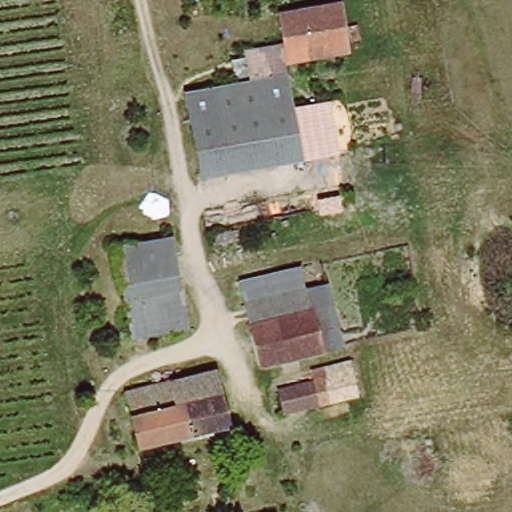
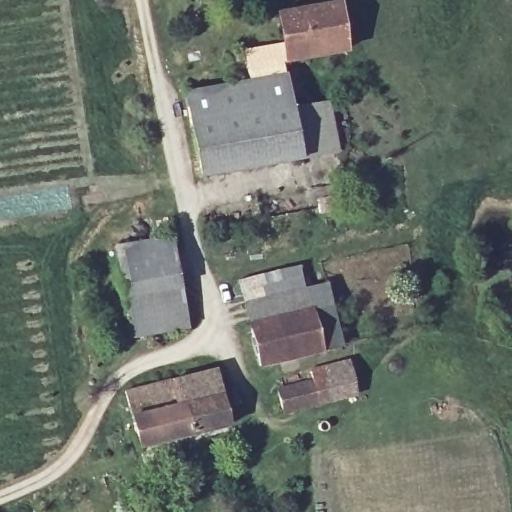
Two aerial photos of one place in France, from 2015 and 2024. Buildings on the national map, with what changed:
unchanged [(249,55),(247,46),(278,40),(273,10),(334,0),(340,0),(350,53),(287,63),(286,50),(249,55)]
unchanged [(194,126),(190,93),(255,83),(249,55),(286,50),(287,63),(293,115),(194,126)]
unchanged [(278,167),(202,177),(194,126),(293,115),(302,163),(278,167)]
unchanged [(171,236),(185,326),(130,335),(114,244),(171,236)]
unchanged [(307,314),(245,329),(235,285),(330,263),(351,342),(317,352),(307,314)]
unchanged [(255,369),(245,329),(307,314),(317,352),(255,369)]
unchanged [(278,417),(272,394),(308,386),(306,374),(355,362),(363,393),(357,395),(278,417)]
unchanged [(214,370),(226,426),(139,448),(125,391),(214,370)]

